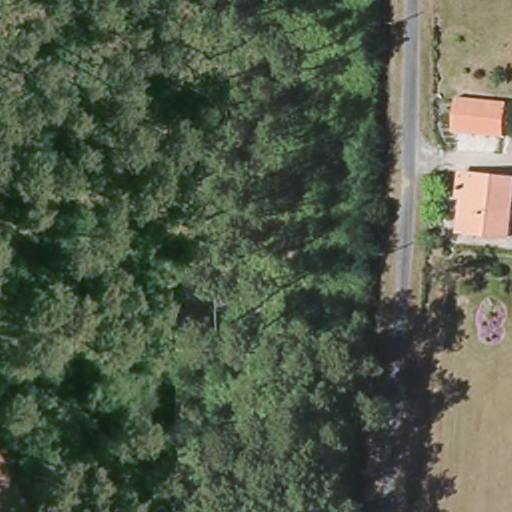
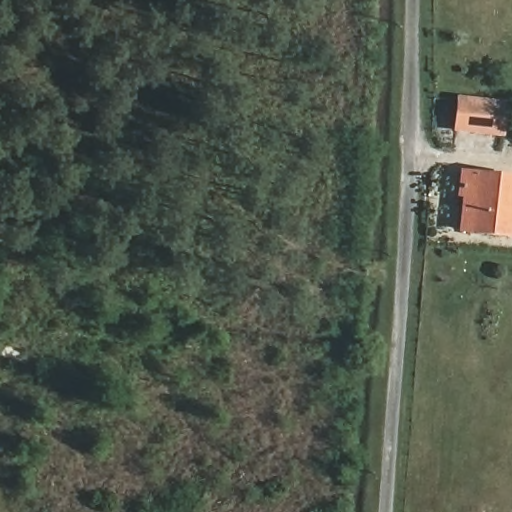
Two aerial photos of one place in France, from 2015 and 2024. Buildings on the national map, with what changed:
unchanged [(486,103),(490,133),(465,137),(458,105),(486,103)]
unchanged [(506,188),(506,234),(473,234),(472,212),(458,213),(457,186),(506,188)]

